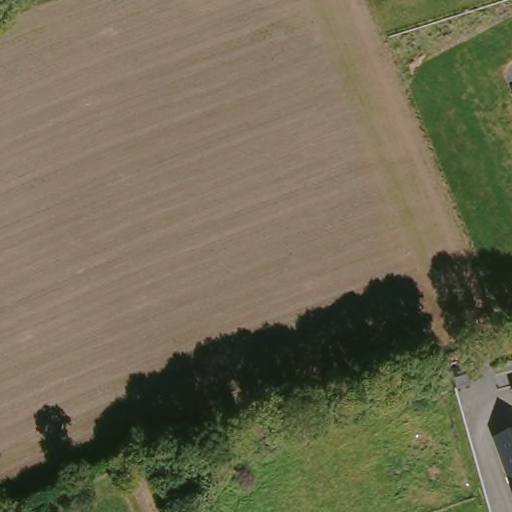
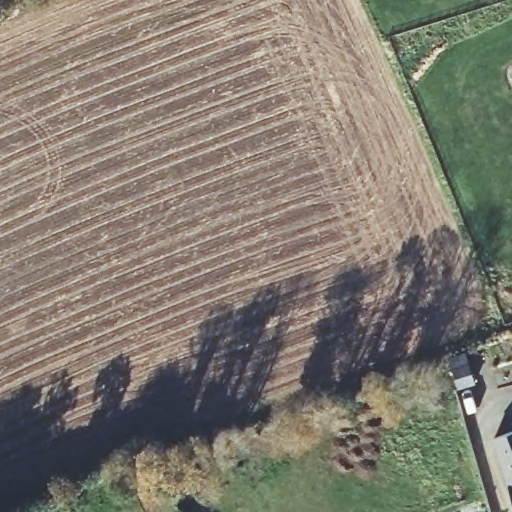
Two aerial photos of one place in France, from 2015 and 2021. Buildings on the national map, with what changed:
unchanged [(508,485),(493,437),(512,430),(512,503),(506,485),(508,485)]

